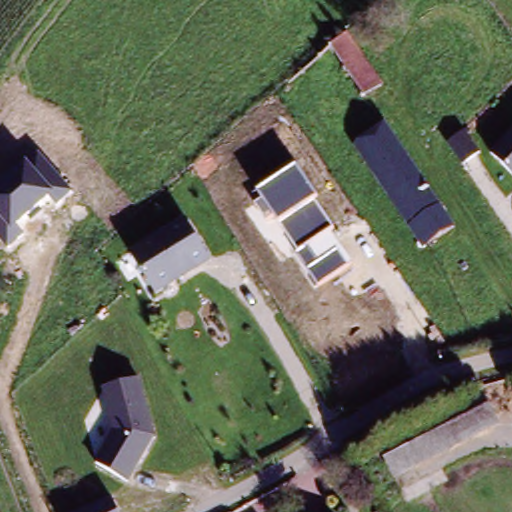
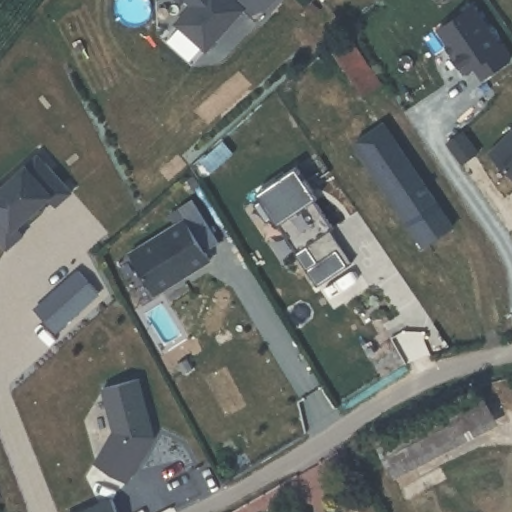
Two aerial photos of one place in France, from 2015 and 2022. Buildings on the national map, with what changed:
new [(177,0),(186,0),(182,4),(177,0)]
new [(233,0),(279,0),(257,24),(244,12),(207,53),(177,26),(195,6),(188,0),(231,0),(232,1),(233,0)]
new [(512,59),(481,78),(473,67),(465,72),(435,28),(473,2),(512,59)]
unchanged [(367,100),(352,79),(334,51),(325,39),(342,24),(352,39),(371,67),(385,88),(367,100)]
unchanged [(455,228),(431,244),(413,215),(404,222),(387,197),(397,192),(365,144),(388,128),(455,228)]
unchanged [(512,130),(512,175),(490,153),(512,130)]
unchanged [(27,161),(30,165),(39,158),(75,193),(58,208),(50,200),(19,228),(25,236),(7,252),(0,242),(0,184),(27,161)]
unchanged [(298,166),(317,195),(335,225),(329,230),(350,263),(318,286),(277,228),(280,224),(275,216),(264,222),(255,208),(263,202),(259,193),(298,166)]
unchanged [(210,265),(158,300),(129,253),(184,219),(210,265)]
unchanged [(142,381),(157,438),(129,487),(95,466),(112,429),(103,392),(142,381)]
unchanged [(485,407),(498,429),(400,480),(387,459),(485,407)]
unchanged [(119,512),(81,512),(112,498),(119,512)]

